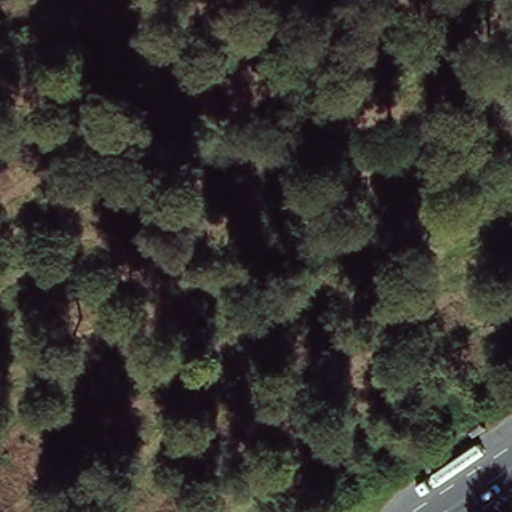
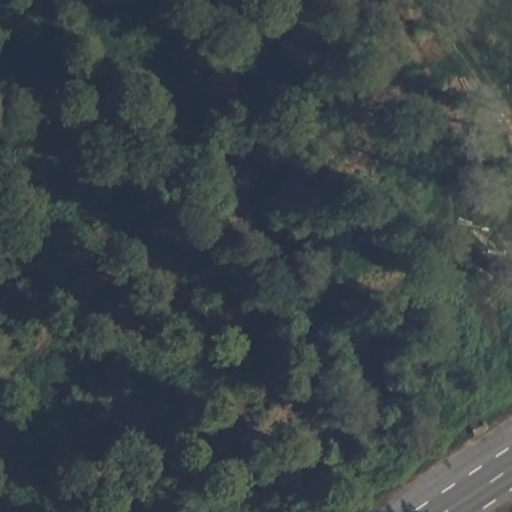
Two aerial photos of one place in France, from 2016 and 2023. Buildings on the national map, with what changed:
unchanged [(496,402),(478,413),(462,398),(486,384),(496,402)]

